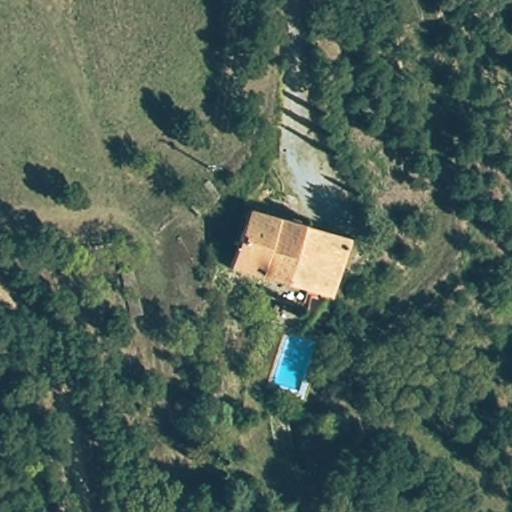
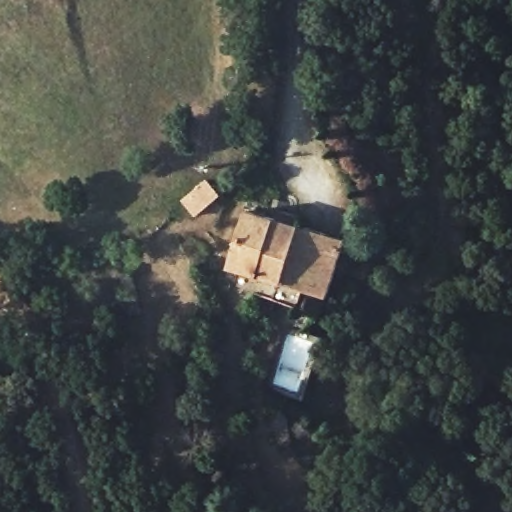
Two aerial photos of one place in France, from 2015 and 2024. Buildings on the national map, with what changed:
unchanged [(337,246),(320,299),(230,274),(248,209),(337,246)]

